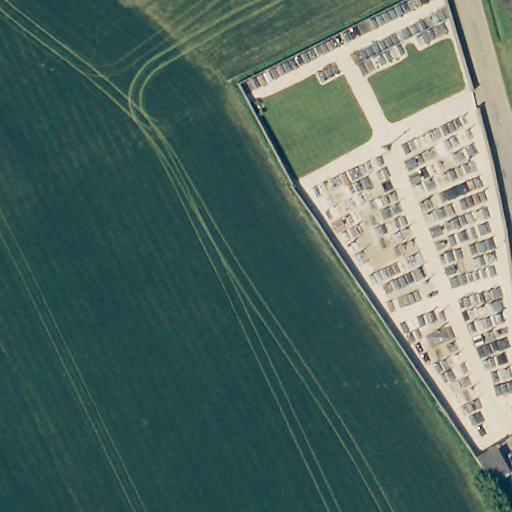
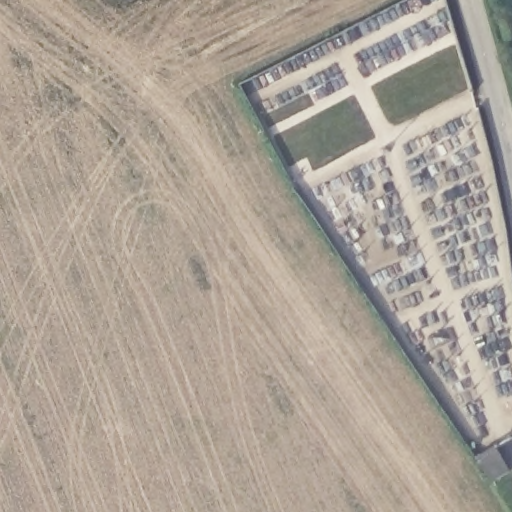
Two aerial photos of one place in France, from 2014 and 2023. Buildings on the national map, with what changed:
unchanged [(491,483),(478,460),(500,451),(512,472),(512,474),(491,483)]

